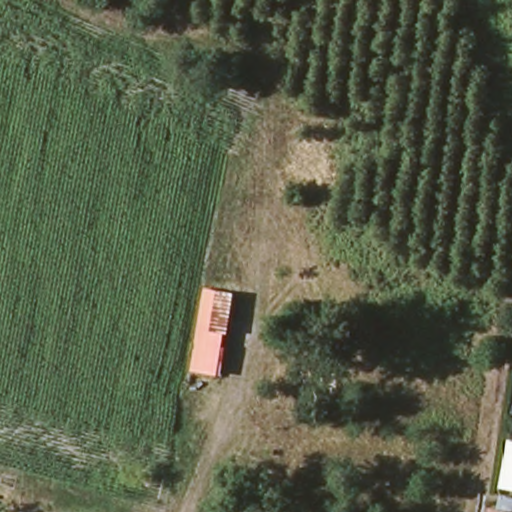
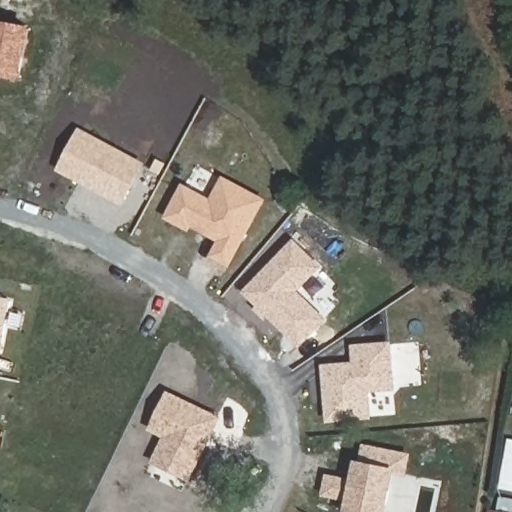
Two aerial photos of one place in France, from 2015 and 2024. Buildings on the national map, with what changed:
new [(21,79),(0,76),(0,21),(32,26),(21,79)]
new [(145,163),(122,205),(56,170),(79,127),(145,163)]
new [(221,176),(266,199),(229,268),(209,257),(216,242),(191,227),(189,231),(164,218),(182,184),(209,199),(221,176)]
new [(294,239),(323,267),(298,292),(327,319),(300,347),(267,316),(264,319),(254,309),(257,307),(243,292),(294,239)]
demolished [(206,287),(236,292),(222,378),(190,372),(206,287)]
new [(13,299),(1,354),(0,354),(0,296),(13,299)]
new [(352,362),(351,345),(390,342),(394,391),(372,393),(374,417),(325,423),(320,364),(352,362)]
new [(150,464),(162,438),(147,429),(167,392),(222,418),(189,483),(150,464)]
demolished [(208,416),(201,453),(124,439),(134,406),(208,416)]
new [(512,440),(512,491),(502,489),(509,440),(512,440)]
new [(411,454),(406,478),(393,476),(386,512),(345,512),(347,501),(321,496),(326,474),(351,479),(355,460),(361,461),(362,444),(411,454)]
demolished [(103,504),(108,486),(161,496),(159,512),(157,512),(130,506),(129,512),(56,512),(57,499),(103,504)]

